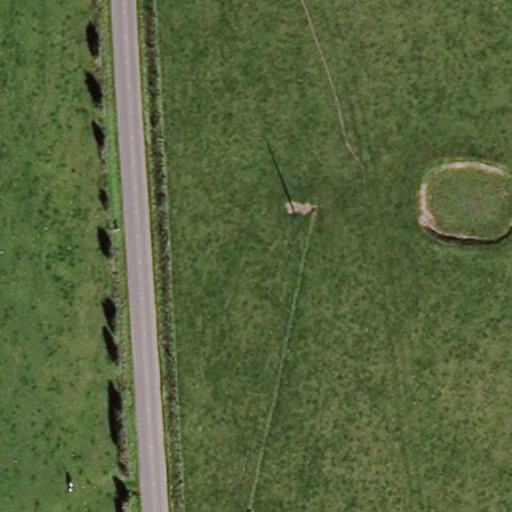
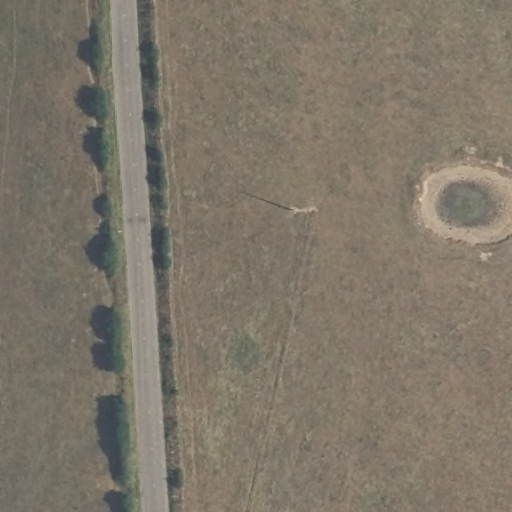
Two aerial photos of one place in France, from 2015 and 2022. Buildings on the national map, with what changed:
[]

